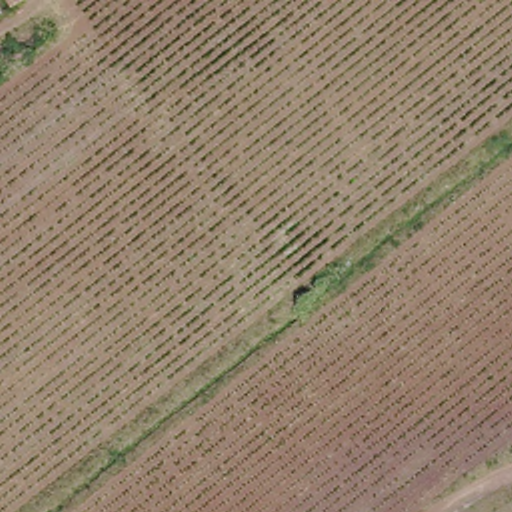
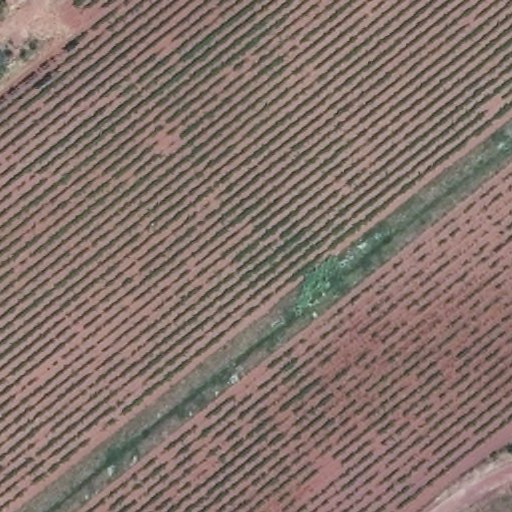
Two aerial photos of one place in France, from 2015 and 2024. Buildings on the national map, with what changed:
unchanged [(2,0),(14,0),(4,5),(2,0)]

